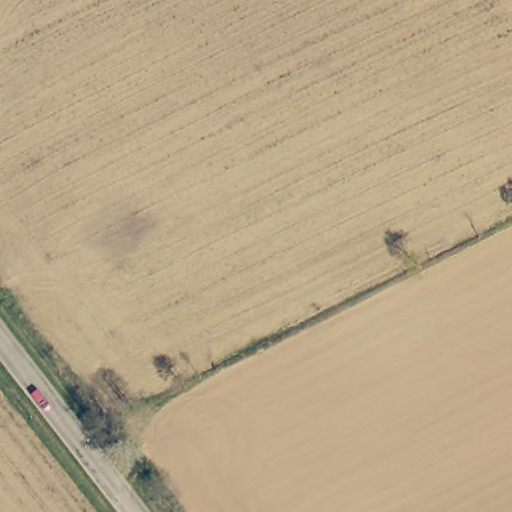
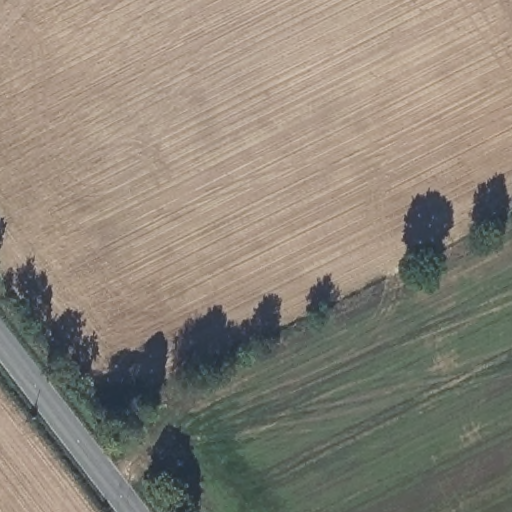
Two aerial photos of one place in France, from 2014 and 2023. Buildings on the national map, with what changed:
[]

